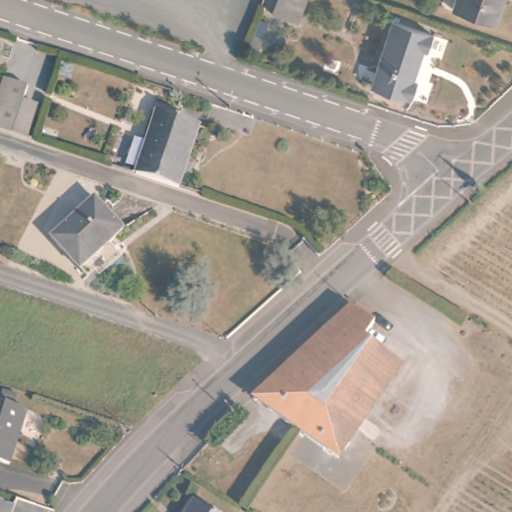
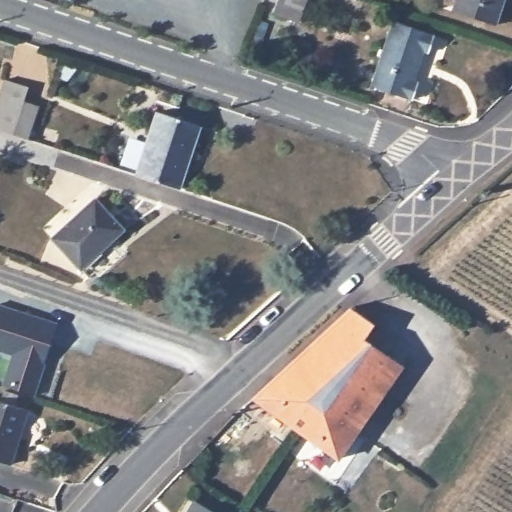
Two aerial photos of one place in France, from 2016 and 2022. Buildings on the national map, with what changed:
unchanged [(271,14),(276,0),(303,0),(296,23),(271,14)]
unchanged [(457,11),(461,0),(502,0),(495,23),(457,11)]
unchanged [(431,35),(426,52),(418,49),(407,84),(415,86),(410,102),(367,89),(388,23),(431,35)]
unchanged [(14,134),(0,130),(0,100),(6,81),(27,88),(22,105),(40,111),(32,140),(14,134)]
unchanged [(197,128),(178,192),(136,179),(155,115),(197,128)]
unchanged [(92,198),(120,228),(107,240),(113,248),(84,274),(50,236),(92,198)]
unchanged [(357,301),(382,322),(368,344),(400,363),(340,459),(251,404),(357,301)]
new [(0,351),(0,304),(57,323),(32,394),(0,386),(0,384),(9,354),(0,351)]
unchanged [(0,404),(27,413),(11,465),(0,462),(0,404)]
unchanged [(213,512),(184,512),(192,499),(213,512)]

